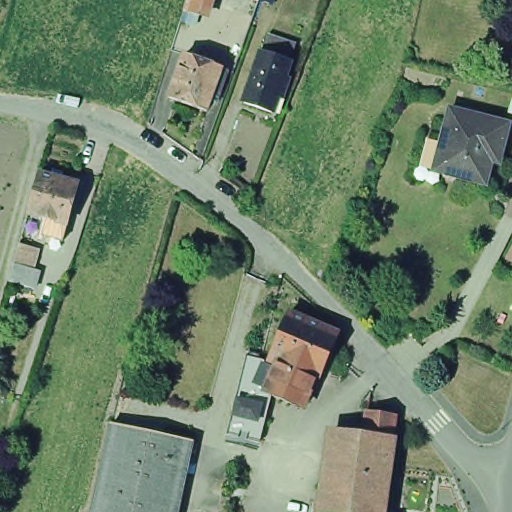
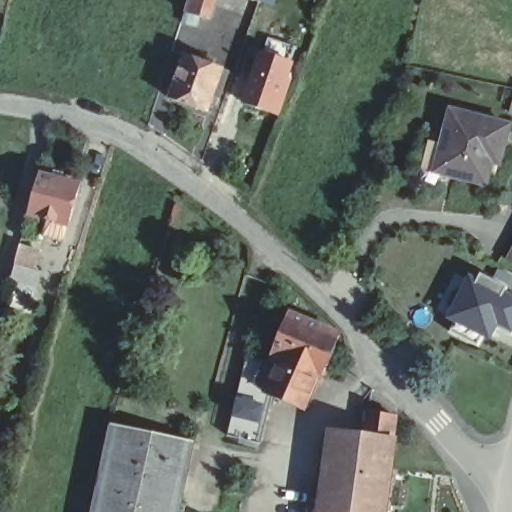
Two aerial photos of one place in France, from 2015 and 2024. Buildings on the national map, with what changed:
unchanged [(179,13),(183,0),(200,0),(195,18),(179,13)]
unchanged [(255,5),(242,0),(256,0),(255,5)]
unchanged [(277,99),(273,112),(267,111),(266,115),(241,106),(257,55),(262,40),(272,43),(288,48),(283,64),(276,85),(281,87),(277,99)]
unchanged [(211,100),(205,98),(201,108),(165,95),(180,52),(216,66),(216,67),(222,69),(211,100)]
unchanged [(497,164),(495,173),(489,172),(485,186),(482,185),(440,174),(433,172),(442,142),(450,111),(508,126),(500,157),(498,164),(497,164)]
unchanged [(39,239),(40,233),(43,222),(23,216),(34,176),(47,179),(50,174),(68,179),(67,185),(75,187),(63,227),(60,239),(58,244),(39,239)]
unchanged [(30,290),(21,287),(5,284),(17,238),(34,242),(26,270),(35,272),(30,290)]
unchanged [(503,261),(512,243),(512,265),(503,261)]
new [(497,327),(490,342),(481,338),(477,345),(451,332),(456,323),(446,318),(468,276),(477,280),(480,275),(507,288),(505,292),(512,296),(512,335),(497,327)]
unchanged [(260,375),(253,372),(257,356),(257,355),(265,357),(265,359),(285,311),(335,332),(317,372),(313,371),(310,378),(304,391),(302,393),(269,378),(260,375)]
unchanged [(240,427),(231,425),(235,409),(243,412),(243,413),(252,375),(268,378),(269,378),(260,417),(257,431),(240,427)]
unchanged [(360,442),(361,432),(355,431),(357,417),(363,417),(388,421),(385,445),(375,512),(312,512),(323,436),(360,442)]
unchanged [(182,447),(181,452),(169,512),(83,512),(100,430),(138,437),(145,439),(182,447)]

